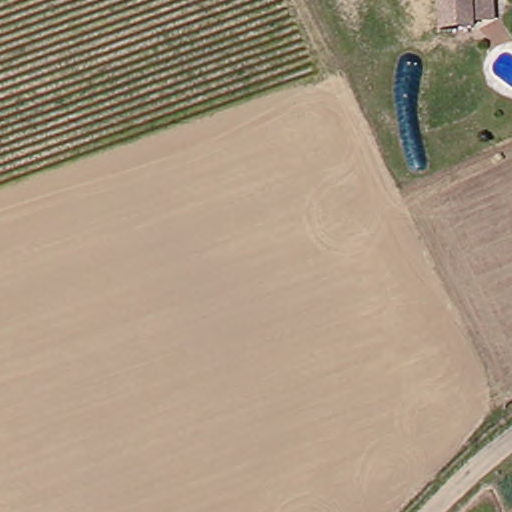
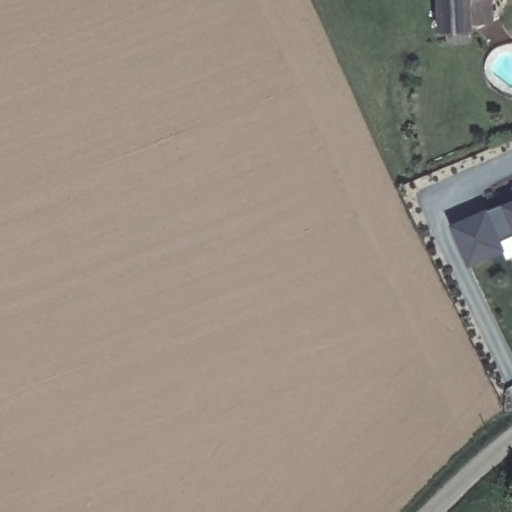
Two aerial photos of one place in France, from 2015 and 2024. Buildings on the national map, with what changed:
unchanged [(470,22),(440,23),(440,0),(489,0),(489,17),(470,17),(470,22)]
new [(512,203),(512,233),(498,239),(501,246),(469,259),(454,224),(505,201),(507,205),(512,203)]

